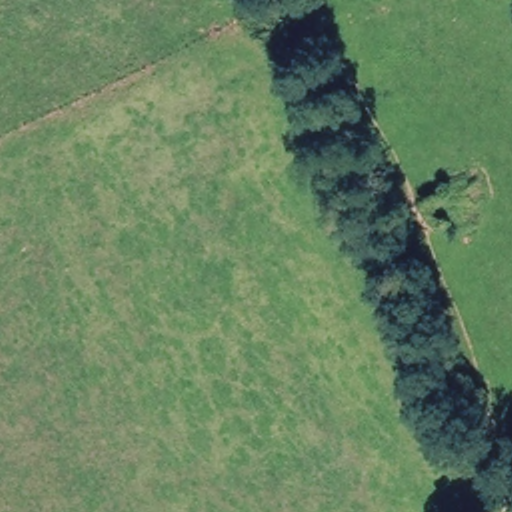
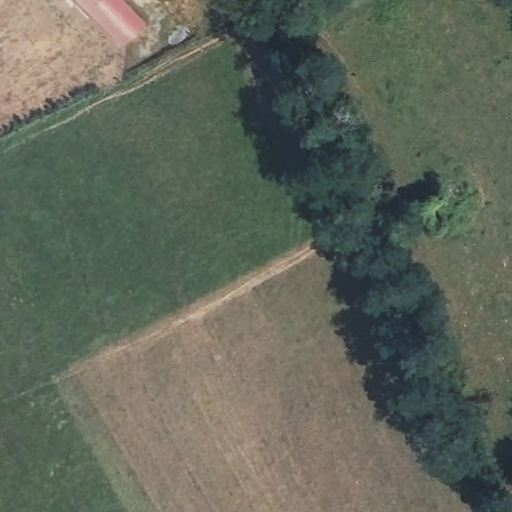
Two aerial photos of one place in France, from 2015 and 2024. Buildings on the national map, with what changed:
new [(145,22),(121,45),(76,0),(123,0),(145,22)]
unchanged [(462,221),(444,233),(431,209),(449,199),(462,221)]

